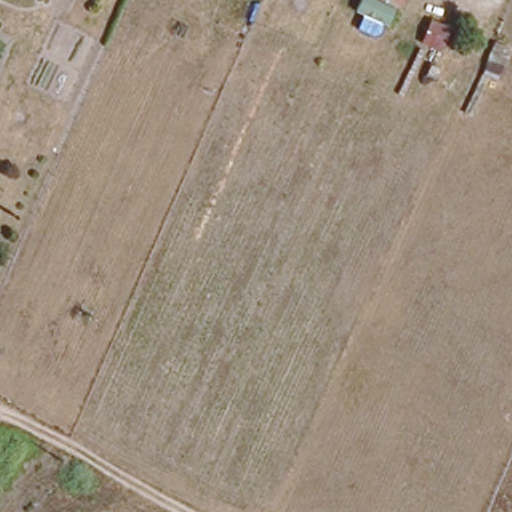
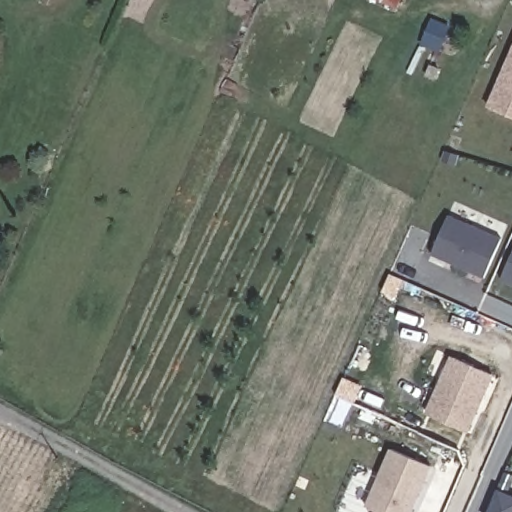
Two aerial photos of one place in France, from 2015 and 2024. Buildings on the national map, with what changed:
unchanged [(383,0),(407,0),(403,10),(383,0)]
unchanged [(449,55),(433,47),(442,25),(459,33),(449,55)]
new [(486,106),(512,47),(512,117),(486,106)]
unchanged [(439,75),(436,83),(427,79),(431,71),(439,75)]
new [(449,214),(502,236),(485,275),(432,252),(449,214)]
new [(512,254),(512,288),(499,282),(512,254)]
new [(451,357),(494,376),(468,433),(426,415),(451,357)]
new [(409,512),(379,512),(379,511),(365,505),(391,448),(430,466),(416,495),(411,506),(409,512)]
new [(504,473),(512,477),(512,489),(509,495),(512,497),(512,512),(487,512),(496,490),(504,473)]

